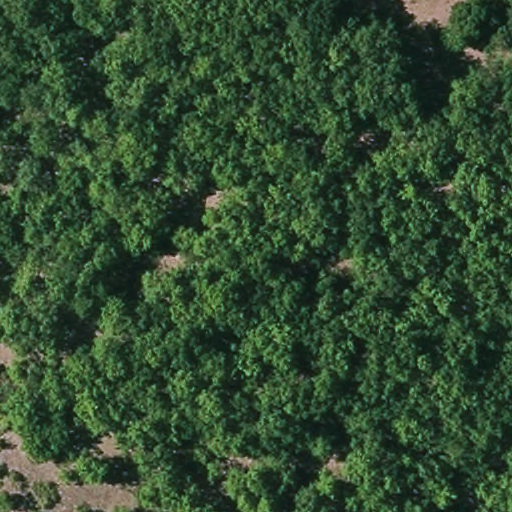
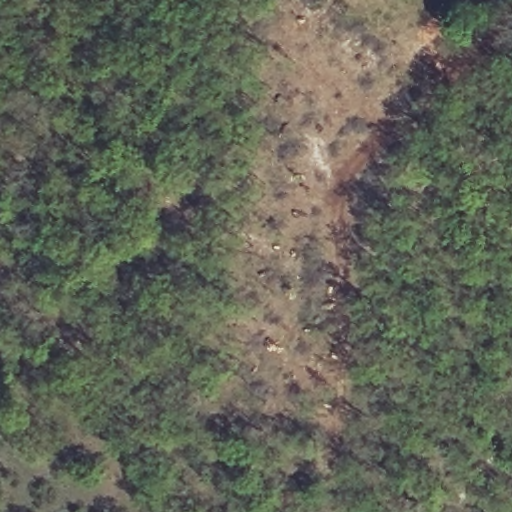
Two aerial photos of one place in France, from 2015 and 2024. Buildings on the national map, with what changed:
[]

